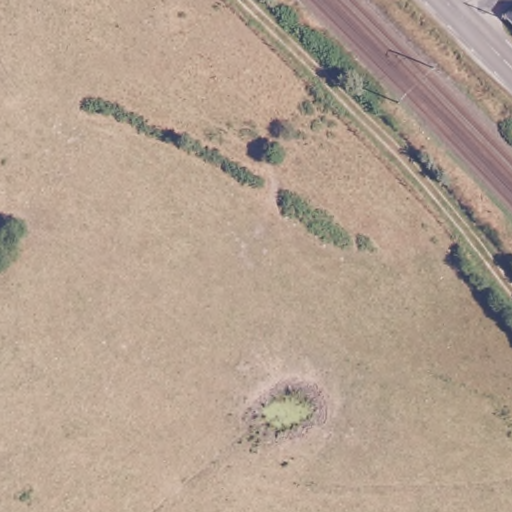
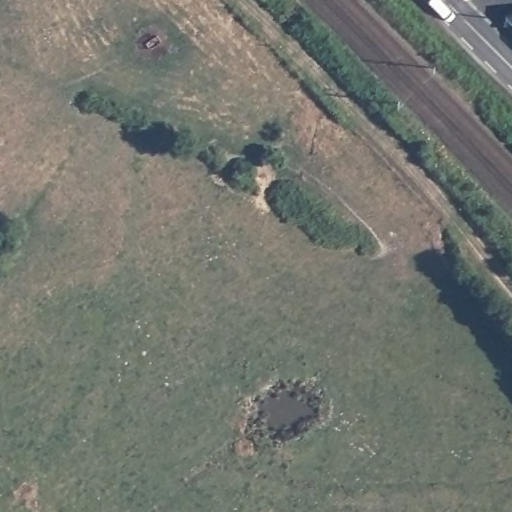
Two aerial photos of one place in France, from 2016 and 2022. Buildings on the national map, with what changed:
unchanged [(506,17),(506,15),(512,13),(512,23),(506,17)]

